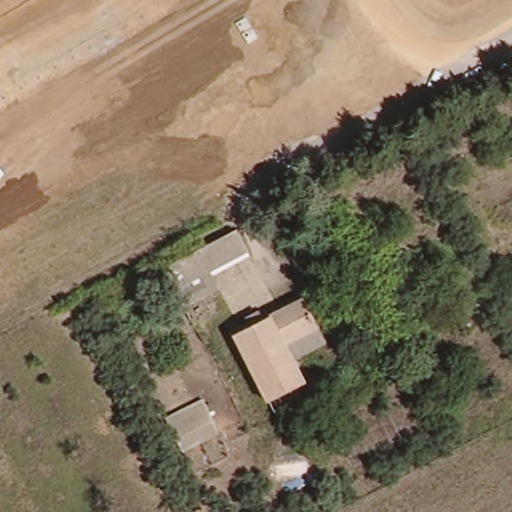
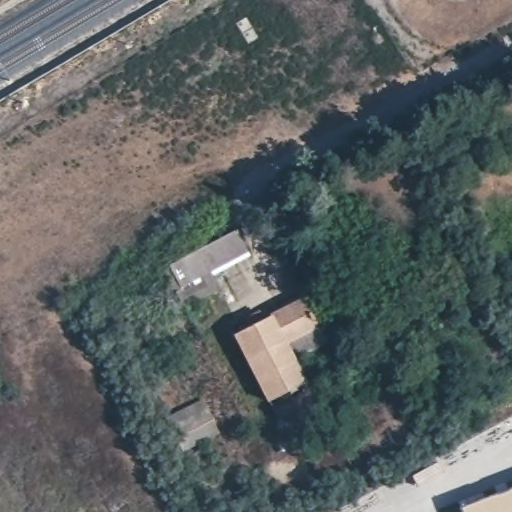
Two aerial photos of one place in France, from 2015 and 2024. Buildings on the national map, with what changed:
unchanged [(173,264),(240,229),(254,255),(187,291),(173,264)]
unchanged [(240,337),(310,300),(332,341),(300,358),(311,378),(273,400),(240,337)]
unchanged [(171,421),(207,402),(218,425),(198,435),(200,439),(184,448),(171,421)]
new [(461,507),(512,487),(512,512),(463,512),(461,507)]

